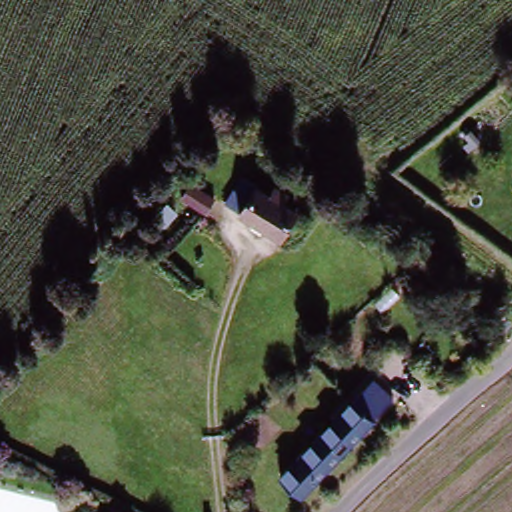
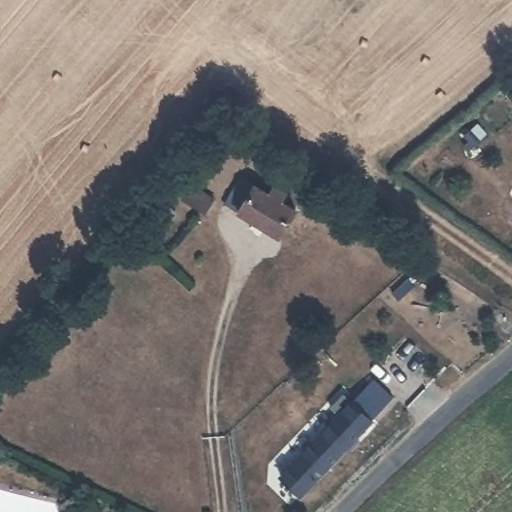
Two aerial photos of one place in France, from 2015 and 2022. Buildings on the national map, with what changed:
unchanged [(289,244),(272,233),(268,239),(259,234),(263,228),(246,217),(234,210),(251,181),(263,189),(280,199),(286,189),(299,197),(293,207),(307,215),(289,244)]
unchanged [(213,197),(205,211),(182,197),(191,183),(213,197)]
unchanged [(141,231),(168,204),(177,213),(151,240),(141,231)]
unchanged [(298,495),(277,476),(349,400),(370,377),(391,397),(370,419),(298,495)]

